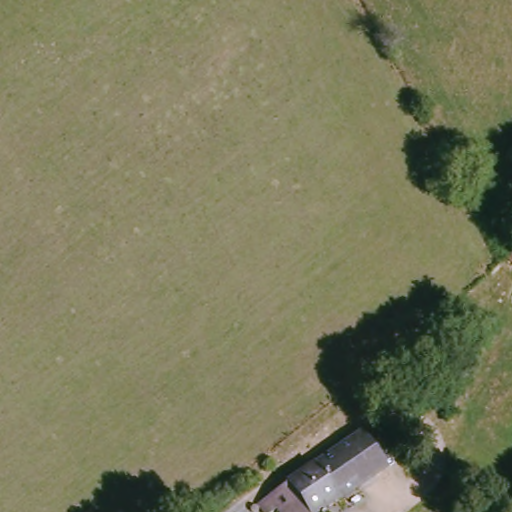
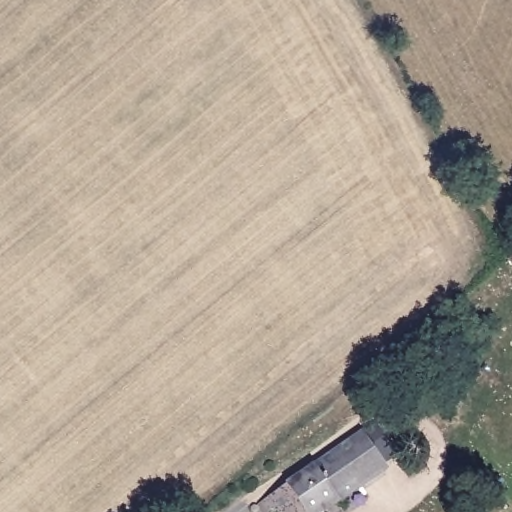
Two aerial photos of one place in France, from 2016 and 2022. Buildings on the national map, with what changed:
unchanged [(379,428),(389,441),(373,452),(388,472),(331,512),(266,512),(263,508),(379,428)]

